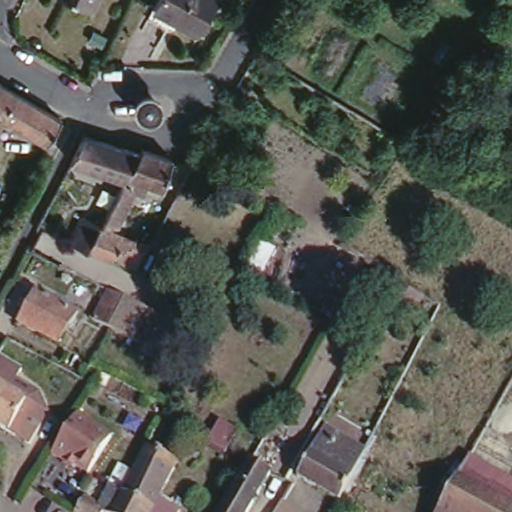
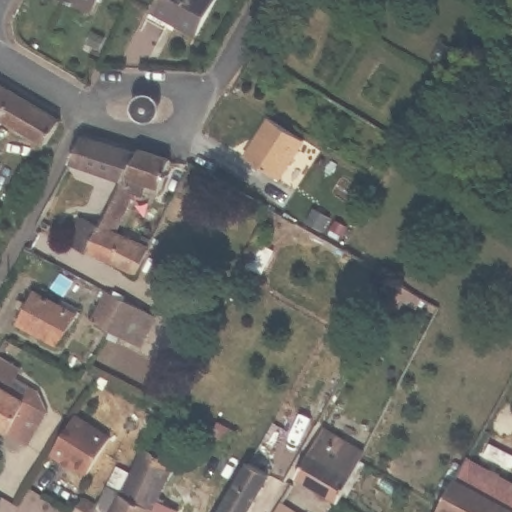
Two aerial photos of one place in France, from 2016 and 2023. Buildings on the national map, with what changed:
unchanged [(66,0),(91,0),(87,9),(66,0)]
unchanged [(150,11),(156,0),(213,0),(194,35),(150,11)]
unchanged [(60,117),(44,140),(3,116),(0,122),(0,81),(60,117)]
new [(270,115),(304,136),(280,174),(246,153),(270,115)]
unchanged [(72,163),(86,136),(142,154),(126,184),(72,163)]
unchanged [(69,243),(82,218),(103,228),(126,184),(142,154),(144,149),(174,159),(164,189),(137,181),(137,200),(118,235),(149,250),(139,276),(91,251),(89,254),(69,243)]
unchanged [(145,344),(136,340),(113,327),(93,317),(108,287),(129,297),(152,309),(160,314),(145,344)]
unchanged [(74,311),(56,342),(15,320),(32,289),(74,311)]
unchanged [(211,338),(203,352),(193,346),(200,332),(211,338)]
unchanged [(19,367),(14,376),(40,392),(46,410),(27,443),(0,428),(0,360),(1,357),(19,367)]
unchanged [(216,408),(235,418),(221,442),(202,432),(216,408)]
unchanged [(113,435),(91,471),(73,460),(70,464),(51,453),(77,413),(113,435)]
unchanged [(321,428),(349,444),(363,452),(355,466),(340,492),(299,467),(321,428)]
unchanged [(174,465),(157,496),(166,500),(164,505),(177,512),(72,512),(80,499),(92,505),(102,486),(114,492),(141,449),(174,465)]
unchanged [(273,475),(248,512),(217,512),(246,459),(273,475)]
unchanged [(512,510),(458,481),(470,461),(512,484),(512,510)]
unchanged [(512,512),(441,512),(458,481),(512,510),(512,512)]
unchanged [(283,499),(302,512),(275,512),(283,499)]

